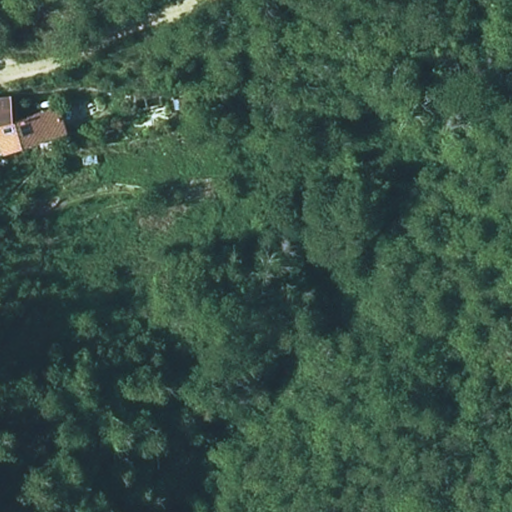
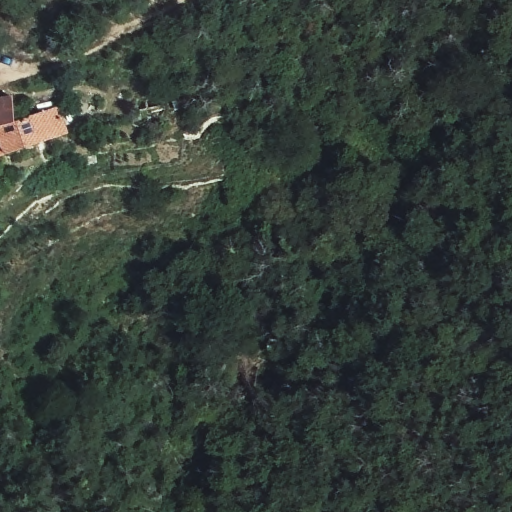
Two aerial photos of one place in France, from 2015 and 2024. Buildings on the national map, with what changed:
unchanged [(0,100),(13,99),(16,131),(62,113),(72,139),(8,161),(0,149),(0,100)]

